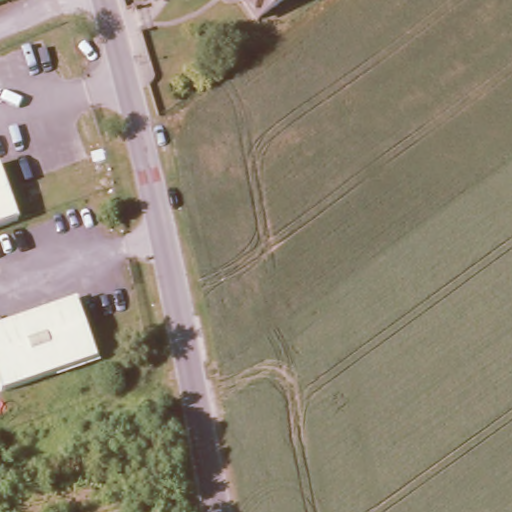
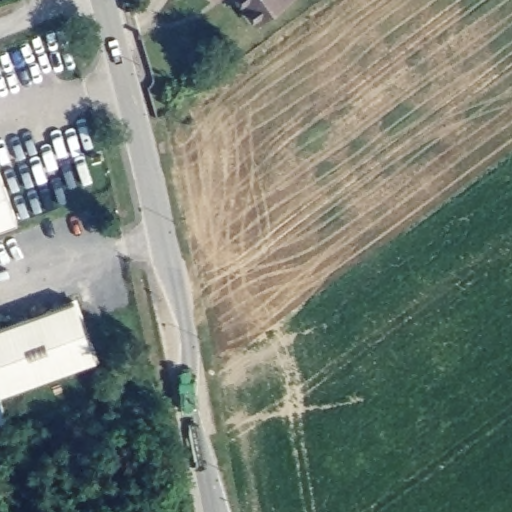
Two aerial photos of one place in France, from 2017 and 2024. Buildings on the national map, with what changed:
unchanged [(243,0),(285,0),(256,19),(243,0)]
unchanged [(0,226),(0,164),(2,163),(20,219),(0,226)]
unchanged [(79,305),(97,364),(0,393),(0,392),(0,329),(79,305)]

